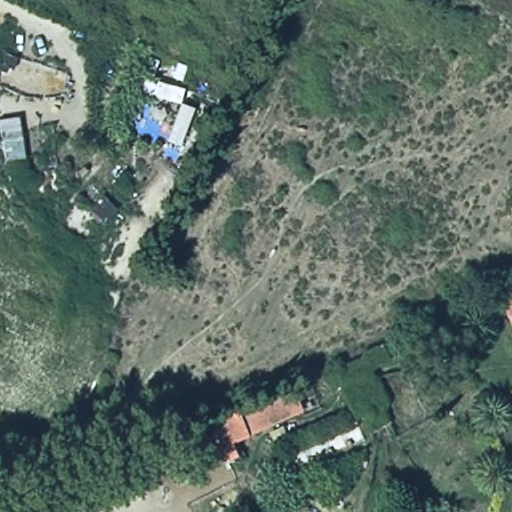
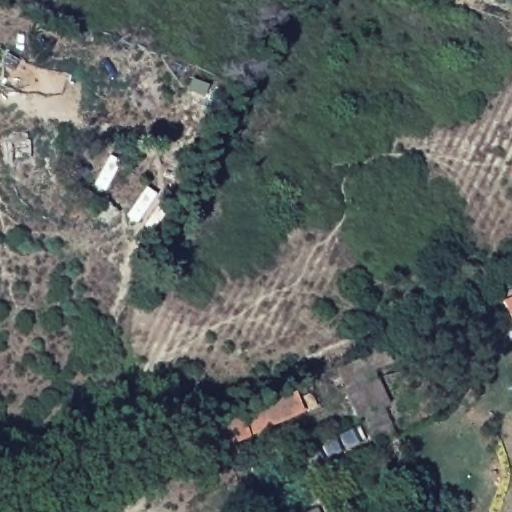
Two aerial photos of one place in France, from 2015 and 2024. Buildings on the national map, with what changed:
unchanged [(512,281),(512,327),(495,290),(512,281)]
unchanged [(224,462),(219,457),(193,467),(181,437),(290,387),(300,412),(231,442),(235,457),(224,462)]

